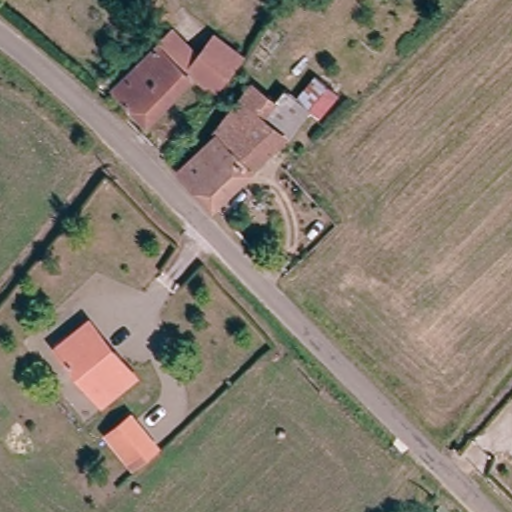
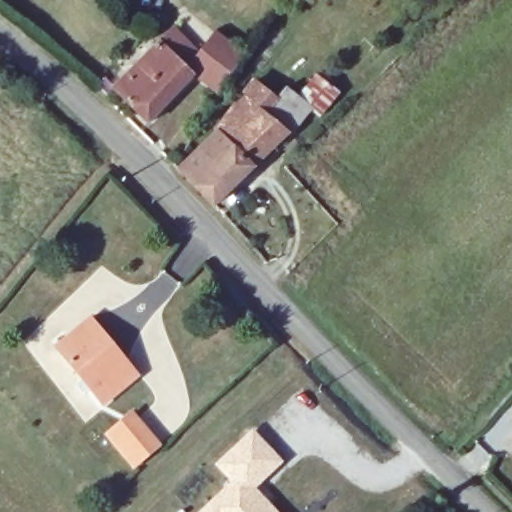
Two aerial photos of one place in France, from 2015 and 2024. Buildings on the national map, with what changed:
unchanged [(114,87),(137,62),(131,54),(147,37),(153,45),(162,36),(177,21),(192,36),(201,46),(218,29),(248,55),(221,95),(198,74),(152,123),(114,87)]
unchanged [(326,119),(315,112),(291,134),(213,209),(175,171),(217,130),(253,76),(276,97),(287,84),(297,95),(316,71),(343,91),(326,119)]
unchanged [(101,405),(62,357),(53,347),(67,335),(89,317),(97,327),(117,352),(137,375),(101,405)]
unchanged [(135,415),(159,445),(136,463),(112,432),(135,415)]
new [(229,482),(213,465),(252,427),(284,462),(257,488),(279,512),(197,512),(229,482)]

